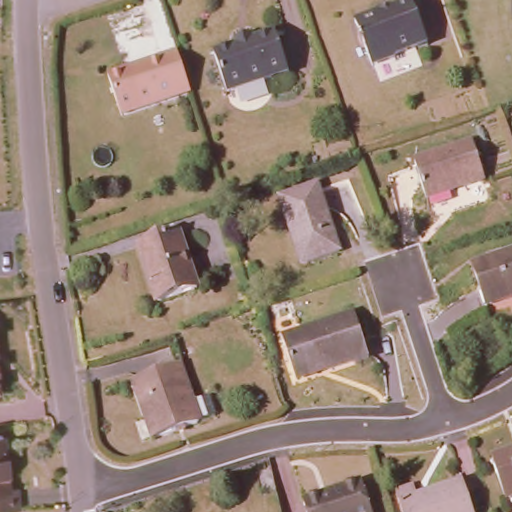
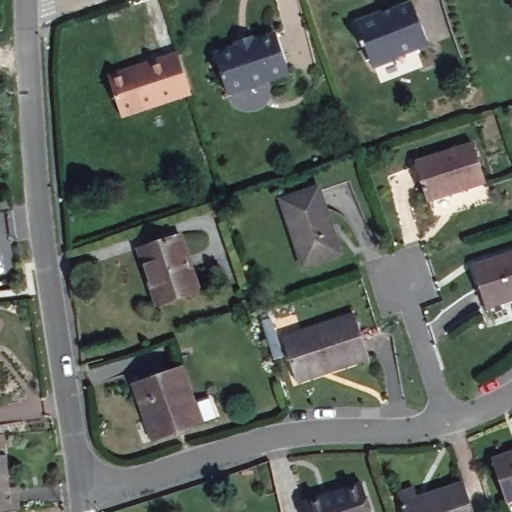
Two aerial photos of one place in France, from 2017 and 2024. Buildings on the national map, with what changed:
unchanged [(394,6),(413,0),(426,43),(395,53),(392,56),(370,63),(363,42),(360,43),(357,34),(360,34),(355,18),(382,10),(394,6)]
unchanged [(226,93),(213,53),(236,46),(235,41),(251,36),(252,41),(275,34),(288,74),(226,93)]
unchanged [(173,50),(186,91),(116,114),(103,73),(173,50)]
unchanged [(415,162),(473,143),(485,181),(426,198),(415,162)]
unchanged [(276,198),(313,186),(335,252),(298,265),(276,198)]
unchanged [(140,243),(180,230),(198,285),(158,298),(140,243)]
unchanged [(512,246),(512,291),(482,300),(468,261),(512,246)]
unchanged [(283,333),(355,309),(368,352),(328,365),(328,364),(296,374),(283,333)]
unchanged [(125,383),(171,367),(183,403),(200,397),(207,417),(145,439),(125,383)]
unchanged [(6,429),(11,483),(21,482),(23,505),(0,507),(0,430),(6,429)]
unchanged [(512,448),(512,493),(505,495),(491,454),(512,448)]
unchanged [(362,478),(373,512),(309,512),(304,497),(362,478)]
unchanged [(414,488),(418,500),(434,495),(432,493),(462,483),(473,512),(403,512),(396,493),(414,488)]

